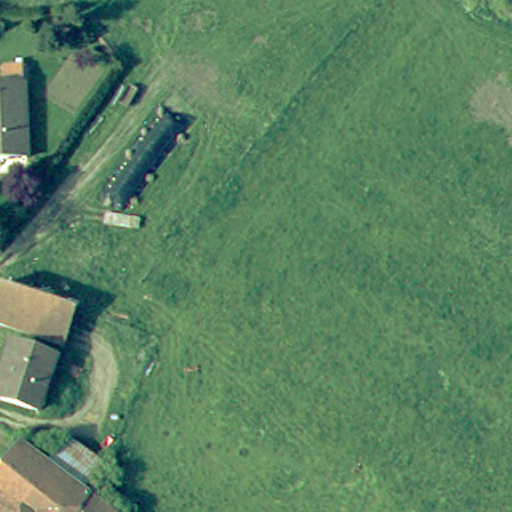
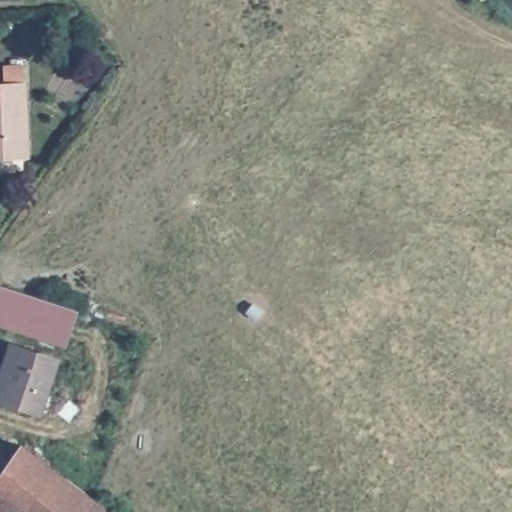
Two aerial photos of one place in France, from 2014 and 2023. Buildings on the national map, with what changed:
unchanged [(24,82),(28,157),(0,158),(0,83),(24,82)]
unchanged [(0,284),(76,309),(66,346),(0,324),(0,286),(0,284)]
unchanged [(11,364),(10,363),(15,345),(57,359),(40,411),(0,398),(11,364)]
unchanged [(49,464),(67,440),(103,468),(86,491),(49,464)]
unchanged [(24,445),(49,464),(86,491),(113,512),(0,512),(0,477),(24,445)]

